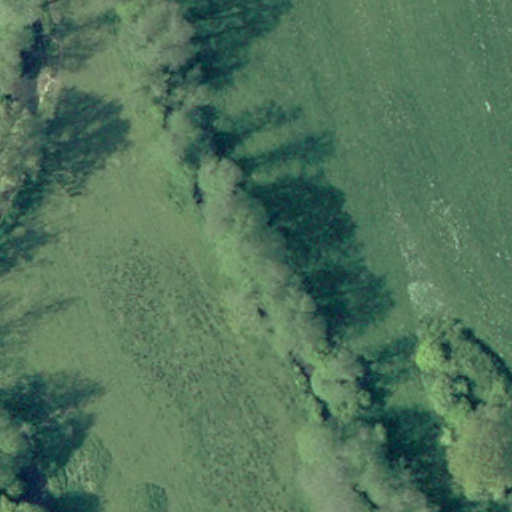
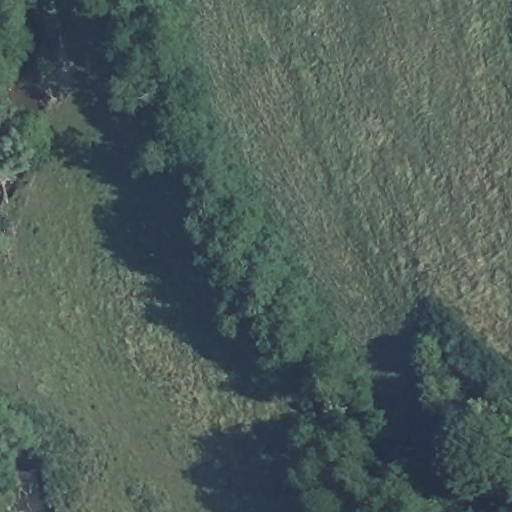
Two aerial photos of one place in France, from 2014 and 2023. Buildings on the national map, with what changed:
[]

